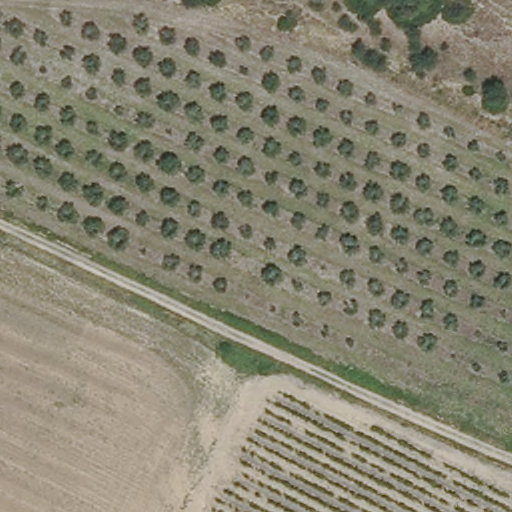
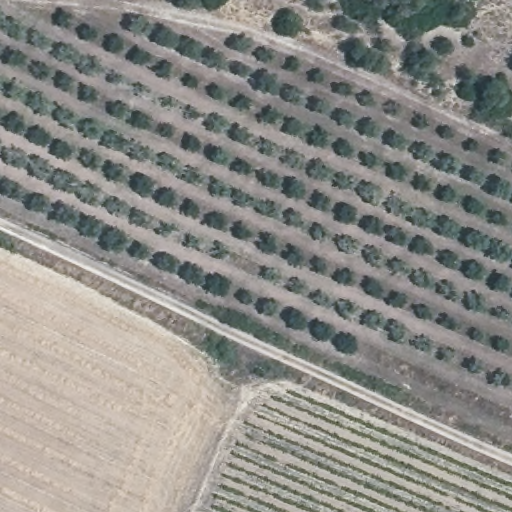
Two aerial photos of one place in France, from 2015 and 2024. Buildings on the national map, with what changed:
[]

